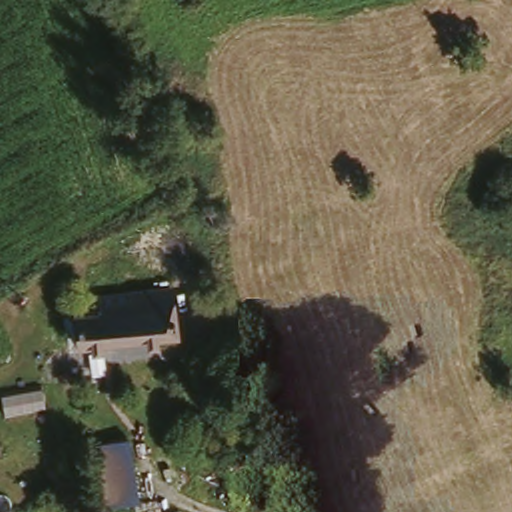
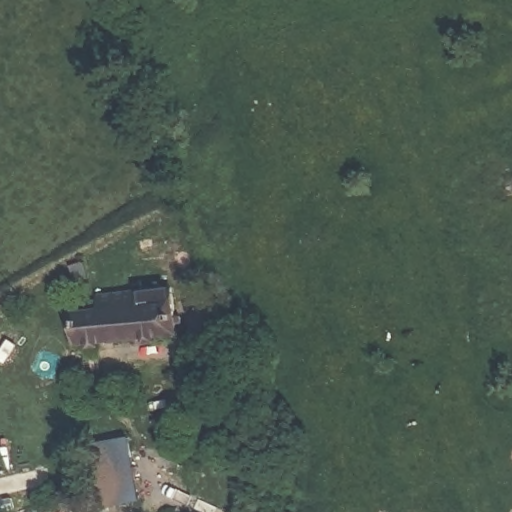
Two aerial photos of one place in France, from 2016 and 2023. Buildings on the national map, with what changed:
unchanged [(72,345),(67,315),(102,312),(104,298),(169,294),(173,341),(152,344),(72,345)]
unchanged [(132,439),(139,502),(102,507),(95,443),(132,439)]

